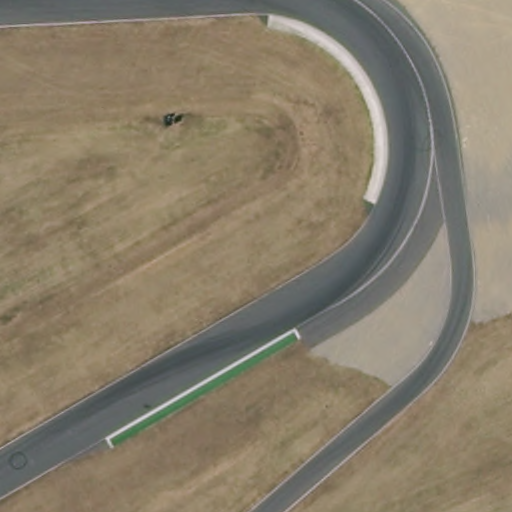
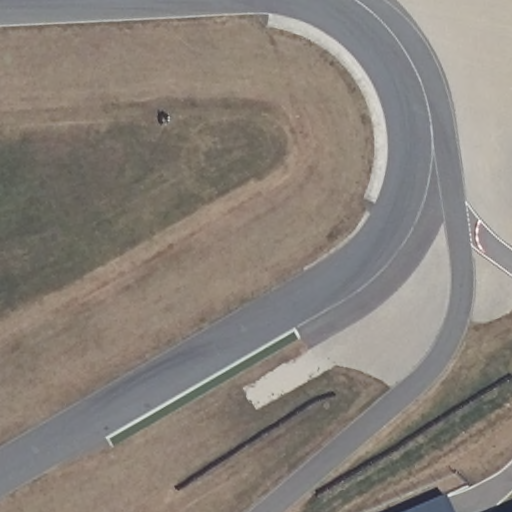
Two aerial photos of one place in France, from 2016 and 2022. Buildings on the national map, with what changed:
new [(446,494),(454,512),(403,512),(446,494)]

